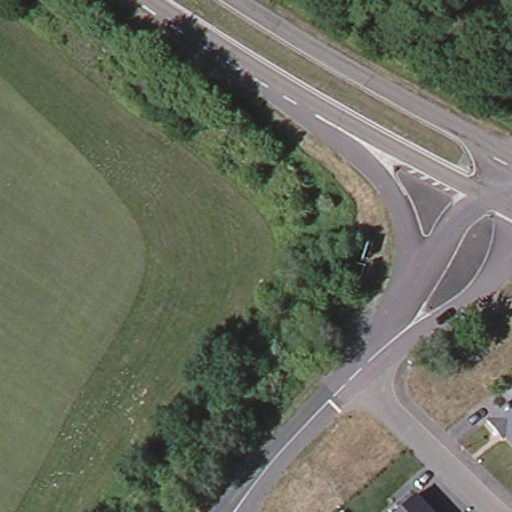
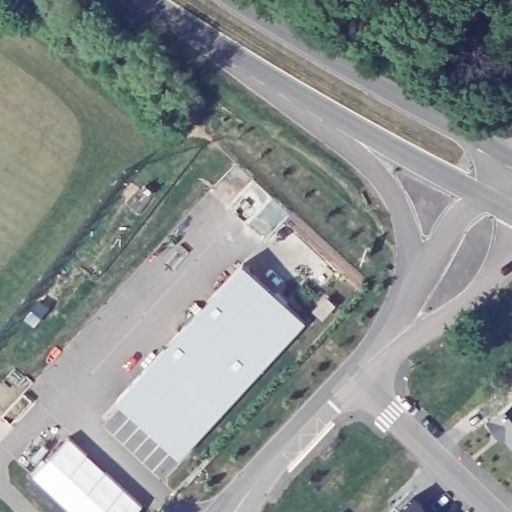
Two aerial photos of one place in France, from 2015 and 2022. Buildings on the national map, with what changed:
new [(243,263),(305,322),(180,456),(117,398),(243,263)]
unchanged [(506,432),(503,435),(499,430),(488,417),(512,397),(512,439),(506,432)]
new [(144,501),(133,512),(81,512),(36,470),(71,433),(144,501)]
unchanged [(430,512),(397,512),(415,496),(430,512)]

